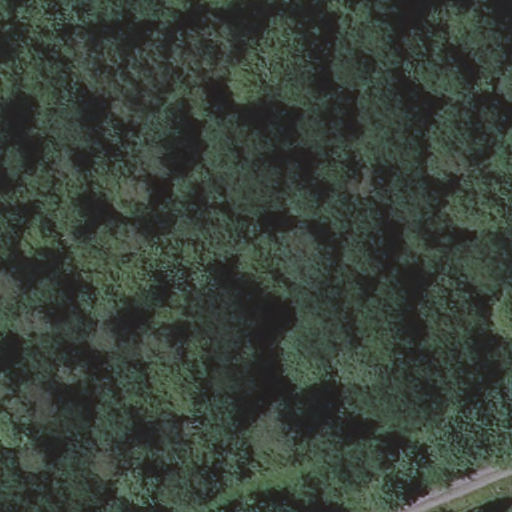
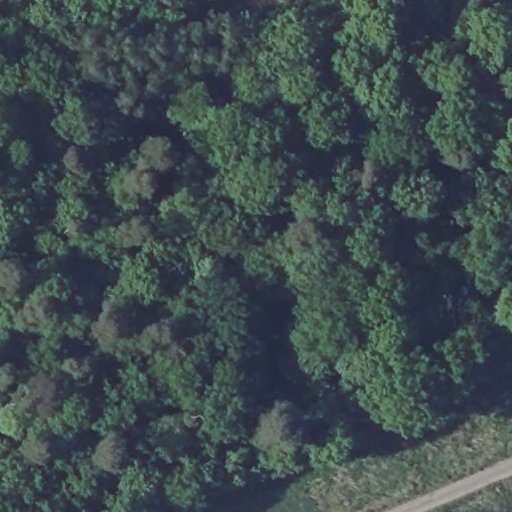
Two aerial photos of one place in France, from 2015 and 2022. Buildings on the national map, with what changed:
[]

